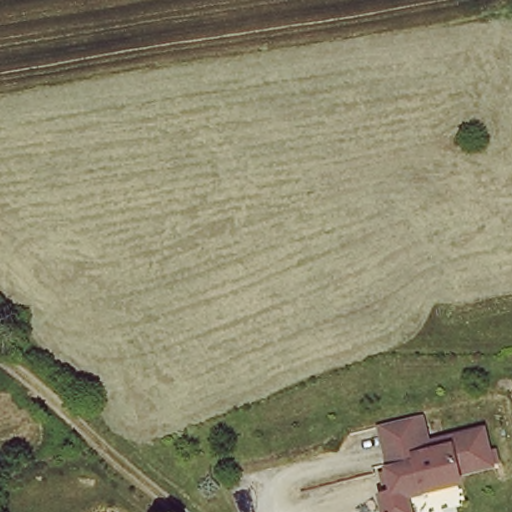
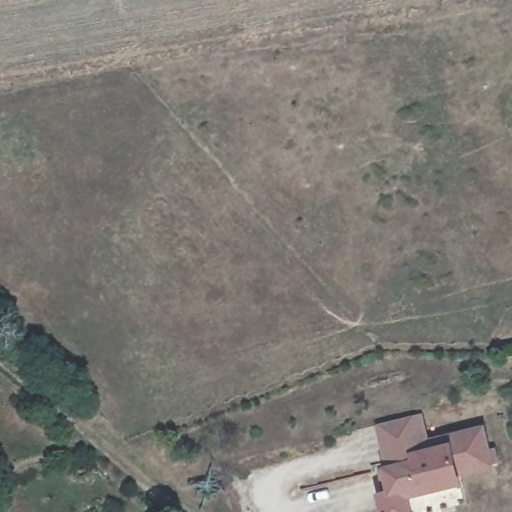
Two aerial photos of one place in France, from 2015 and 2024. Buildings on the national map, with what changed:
unchanged [(378,512),(375,488),(388,486),(384,463),(375,417),(413,410),(419,437),(447,433),(482,427),(490,463),(458,469),(458,480),(422,488),(404,492),(407,510),(399,512),(378,512)]

